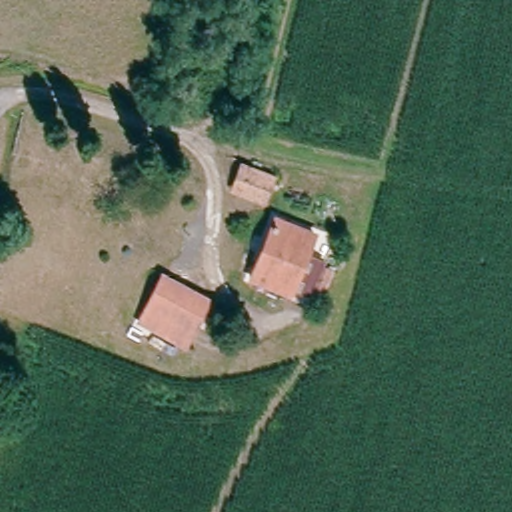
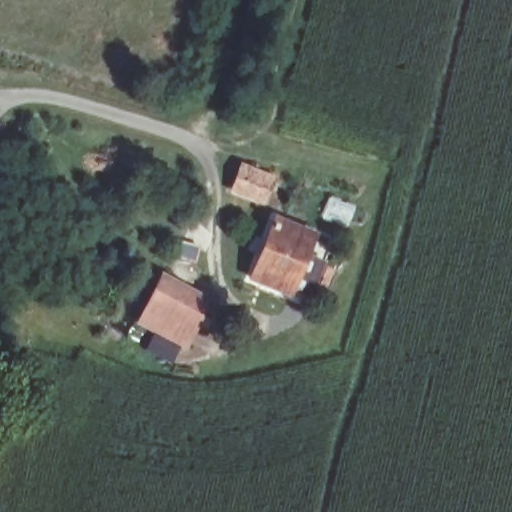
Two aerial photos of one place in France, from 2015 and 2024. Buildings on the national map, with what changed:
unchanged [(237,171),(267,182),(257,204),(228,194),(237,171)]
unchanged [(269,222),(311,237),(289,296),(248,281),(269,222)]
unchanged [(165,266),(212,292),(188,340),(156,323),(140,315),(148,298),(165,266)]

